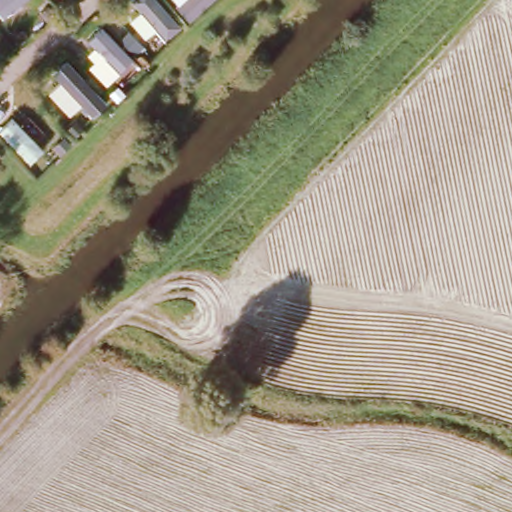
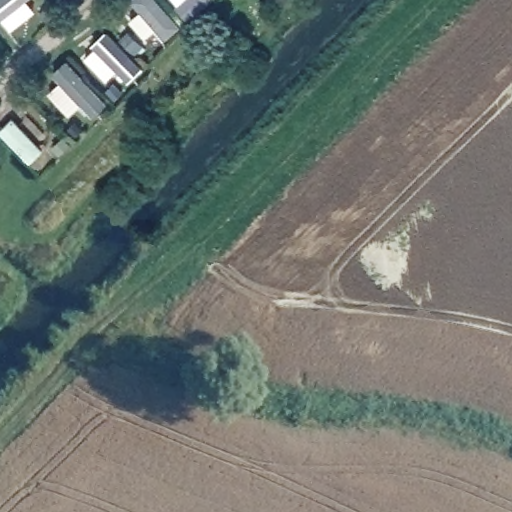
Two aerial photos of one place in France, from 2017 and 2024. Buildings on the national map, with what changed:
unchanged [(150,24),(130,0),(157,0),(167,9),(150,24)]
unchanged [(27,84),(42,74),(80,111),(64,125),(27,84)]

